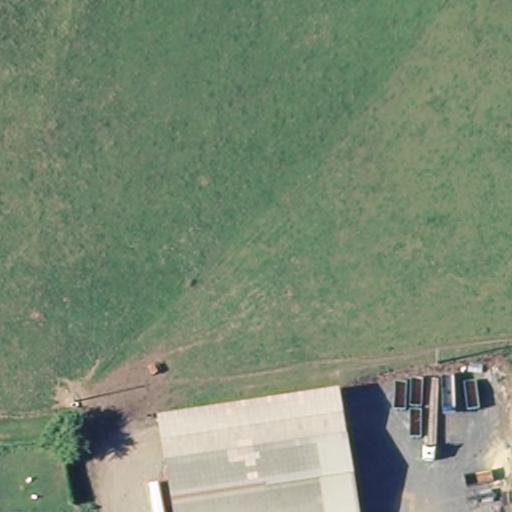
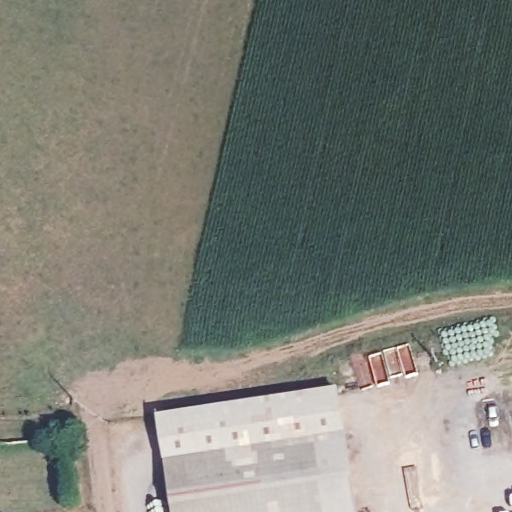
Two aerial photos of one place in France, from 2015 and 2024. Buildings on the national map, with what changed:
unchanged [(161,420),(342,397),(348,442),(167,466),(161,420)]
unchanged [(358,512),(174,512),(167,466),(348,442),(358,512)]

